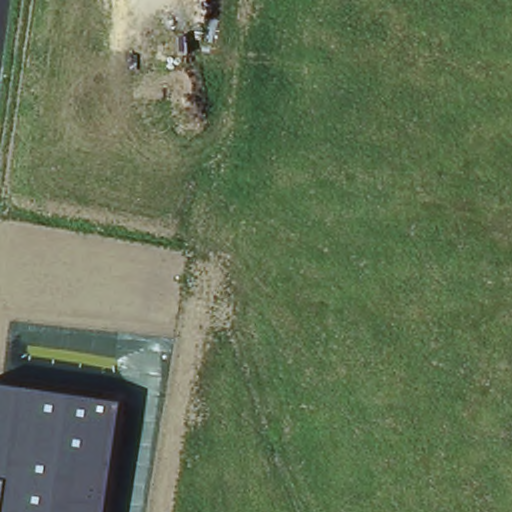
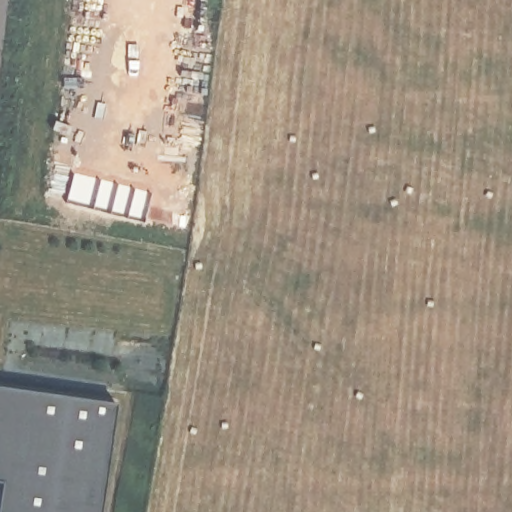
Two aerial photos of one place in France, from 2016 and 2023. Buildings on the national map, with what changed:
unchanged [(100,512),(0,512),(0,386),(115,402),(100,512)]

